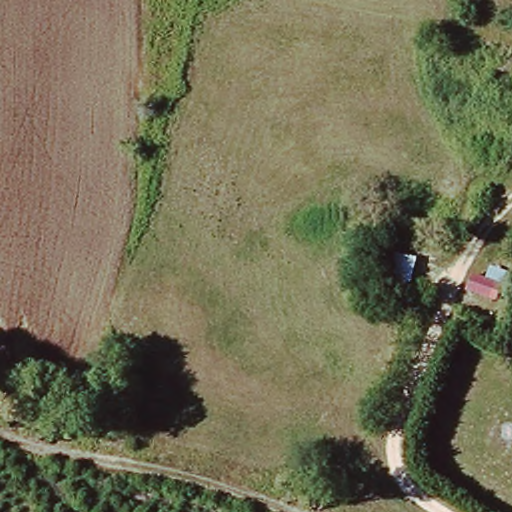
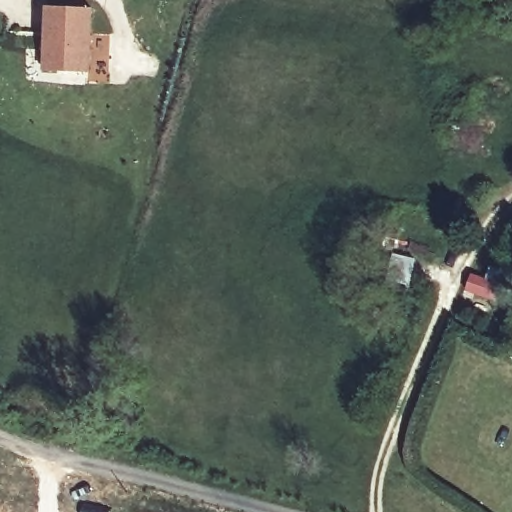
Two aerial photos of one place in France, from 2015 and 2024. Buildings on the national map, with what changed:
new [(45,10),(88,13),(86,76),(43,74),(45,10)]

